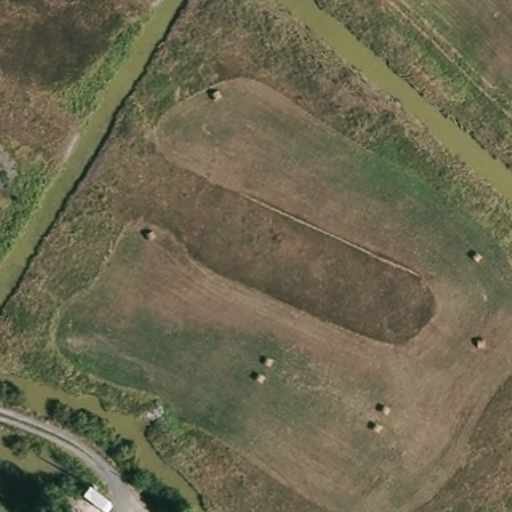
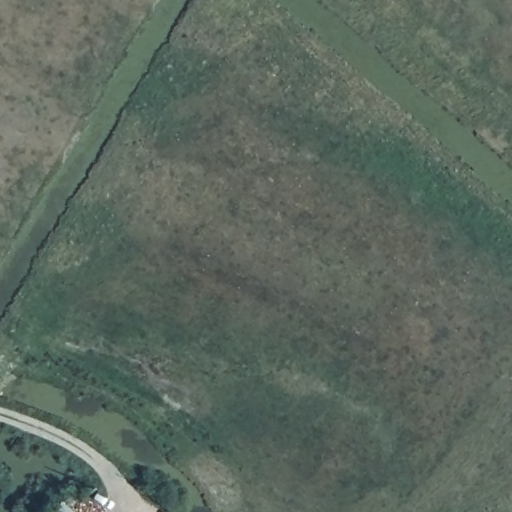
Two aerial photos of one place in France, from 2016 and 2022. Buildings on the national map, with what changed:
unchanged [(62,512),(66,507),(72,512),(62,512)]

